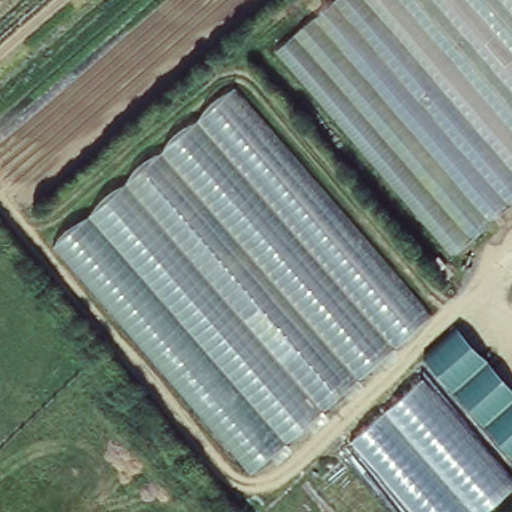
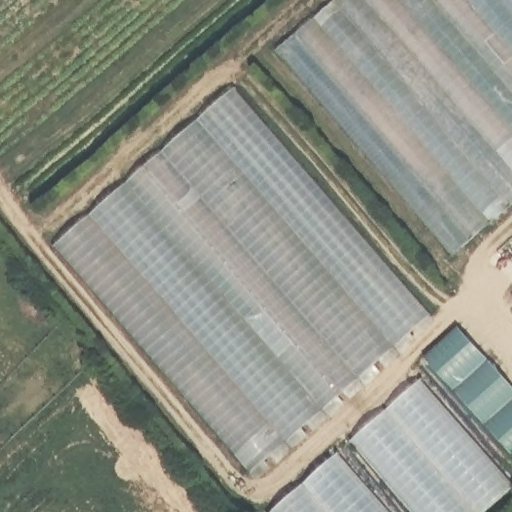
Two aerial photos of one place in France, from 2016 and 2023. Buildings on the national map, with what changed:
unchanged [(278,47),(333,0),(512,0),(512,204),(459,248),(278,47)]
unchanged [(55,245),(235,85),(432,313),(250,472),(55,245)]
unchanged [(460,326),(512,383),(512,454),(425,358),(460,326)]
unchanged [(512,477),(512,493),(490,512),(408,512),(348,443),(426,380),(512,477)]
new [(396,512),(272,512),(339,448),(396,512)]

